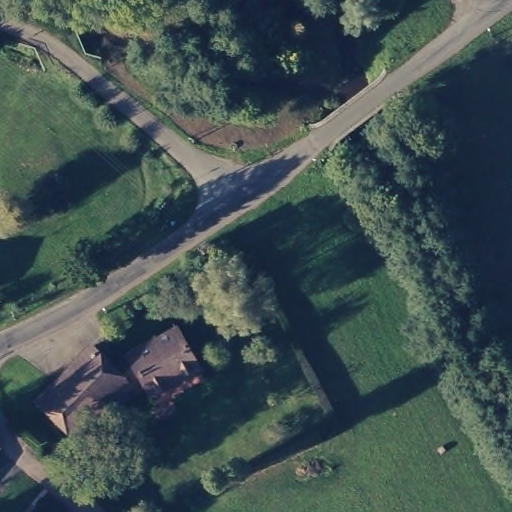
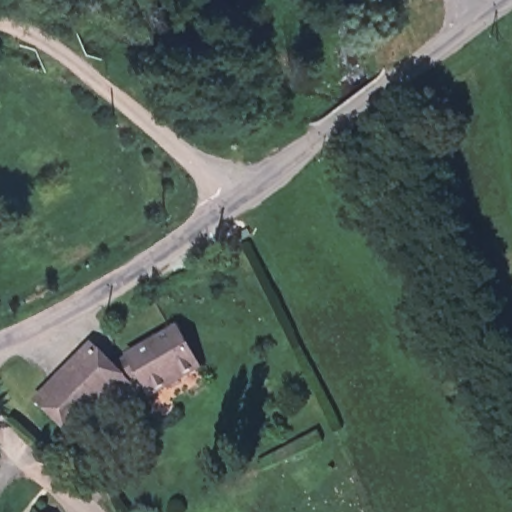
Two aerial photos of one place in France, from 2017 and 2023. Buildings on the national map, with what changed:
unchanged [(105,359),(172,321),(192,360),(144,386),(134,374),(94,411),(110,424),(89,445),(73,431),(70,435),(30,394),(41,385),(64,362),(86,343),(105,359)]

